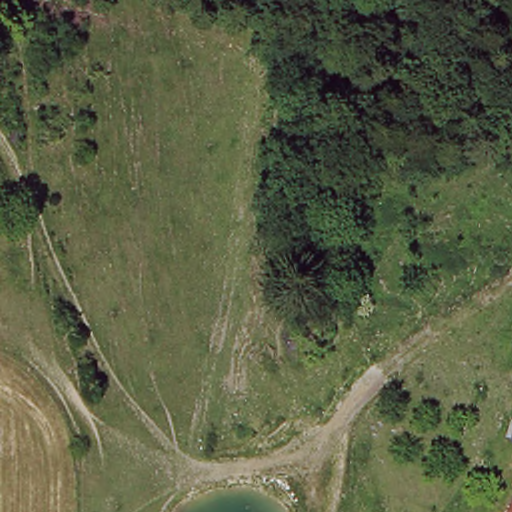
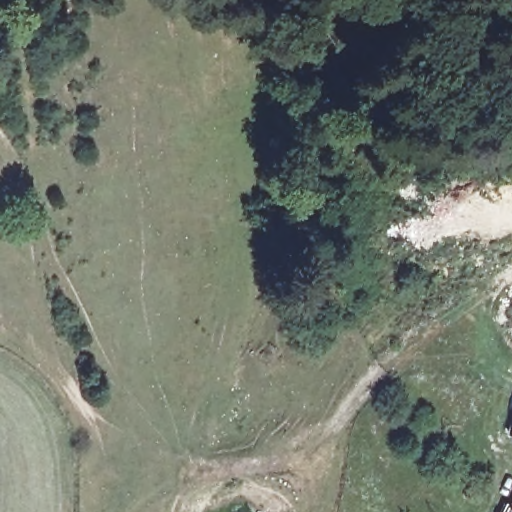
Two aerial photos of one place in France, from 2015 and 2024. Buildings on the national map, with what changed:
unchanged [(512,499),(512,512),(506,512),(512,499)]

